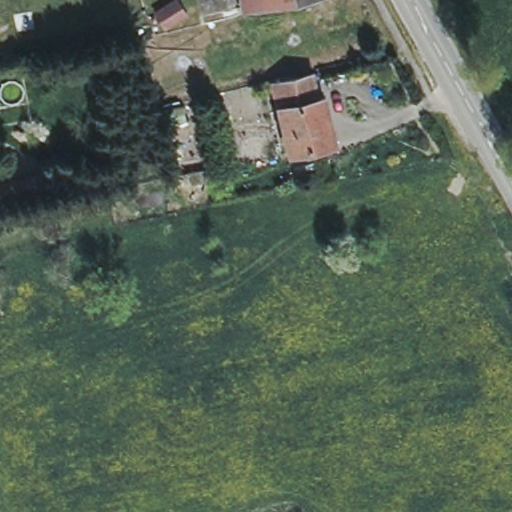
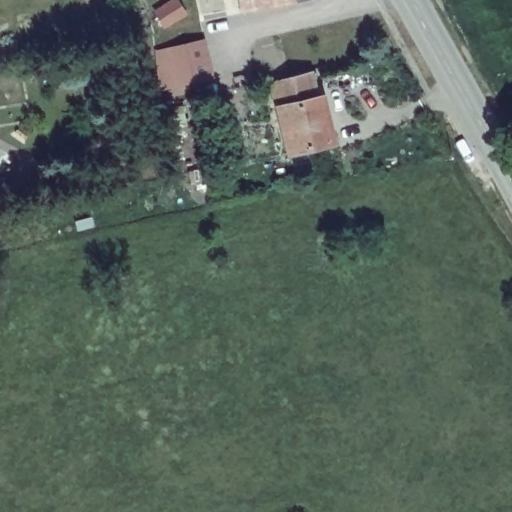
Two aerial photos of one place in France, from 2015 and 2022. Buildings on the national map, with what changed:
unchanged [(245,0),(309,0),(248,14),(245,0)]
new [(172,2),(181,15),(163,26),(155,13),(172,2)]
new [(207,39),(215,87),(162,99),(155,51),(207,39)]
unchanged [(329,125),(334,145),(288,154),(283,135),(277,108),(274,82),(310,74),(317,99),(322,97),(329,125)]
unchanged [(33,185),(36,197),(3,205),(0,195),(0,188),(32,180),(33,185)]

